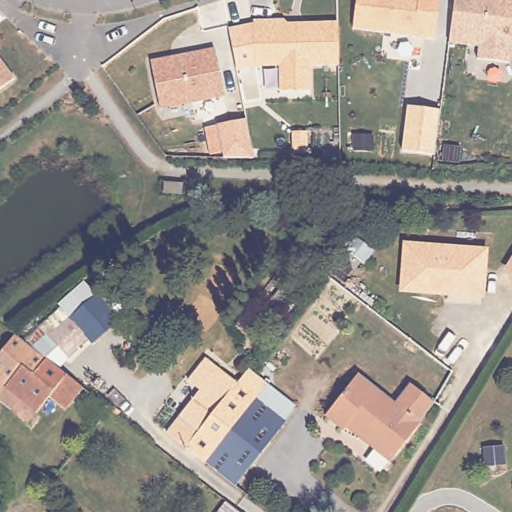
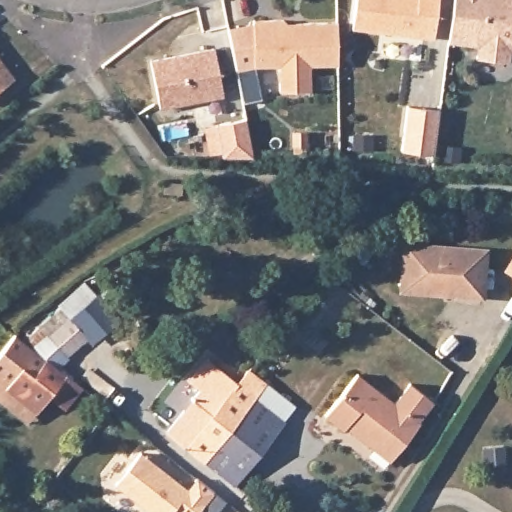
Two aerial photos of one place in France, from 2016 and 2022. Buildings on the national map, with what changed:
unchanged [(433,39),(351,29),(354,0),(437,0),(433,39)]
unchanged [(511,62),(479,59),(481,46),(452,43),(457,0),(512,0),(512,54),(511,62)]
unchanged [(337,34),(337,65),(309,65),(310,90),(279,91),(278,65),(275,61),(253,62),(252,20),(282,20),(286,23),(336,22),(337,34)]
unchanged [(228,28),(252,24),(253,62),(275,61),(278,65),(278,67),(253,69),(238,72),(228,28)]
unchanged [(164,108),(154,61),(218,49),(227,95),(164,108)]
unchanged [(0,90),(0,66),(11,81),(0,90)]
unchanged [(407,105),(440,109),(435,155),(402,150),(407,105)]
unchanged [(254,152),(223,151),(217,120),(246,114),(254,152)]
unchanged [(490,251),(485,302),(399,293),(403,242),(490,251)]
unchanged [(504,271),(512,256),(512,277),(504,271)]
unchanged [(120,320),(93,343),(90,340),(59,369),(46,359),(26,343),(64,310),(58,304),(85,281),(120,320)]
unchanged [(0,354),(15,335),(26,343),(46,359),(59,369),(82,387),(65,408),(49,396),(36,412),(29,422),(0,399),(0,354)]
unchanged [(169,431),(204,387),(192,377),(209,356),(240,381),(189,447),(169,431)]
unchanged [(240,381),(243,377),(250,367),(270,382),(208,461),(189,447),(240,381)]
unchanged [(359,370),(394,400),(410,381),(434,400),(418,419),(421,421),(389,458),(372,444),(376,438),(351,418),(344,425),(326,410),(359,370)]
unchanged [(208,461),(270,382),(295,401),(283,416),(286,419),(236,483),(208,461)]
new [(188,487),(198,476),(215,491),(199,512),(179,512),(175,508),(172,512),(151,512),(115,483),(141,450),(188,487)]
demolished [(203,512),(182,496),(199,476),(245,512),(203,512)]

